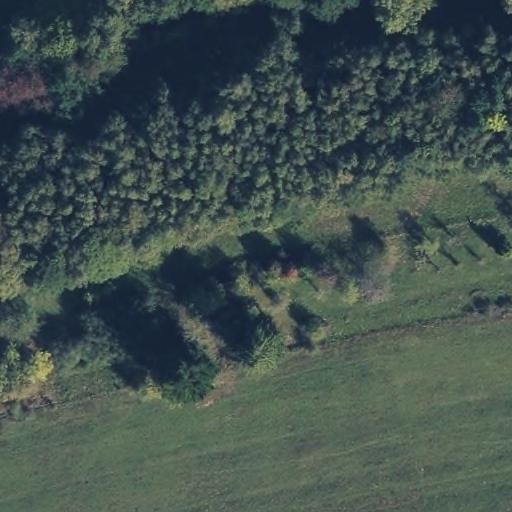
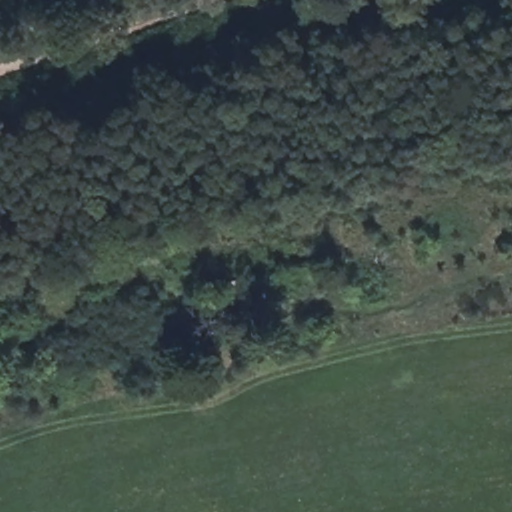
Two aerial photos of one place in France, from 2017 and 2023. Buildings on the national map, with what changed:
[]

